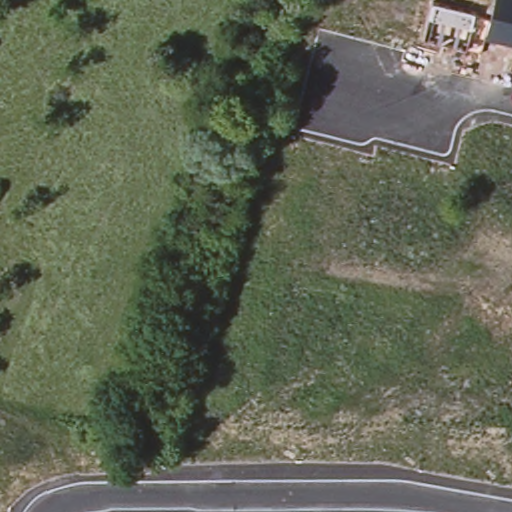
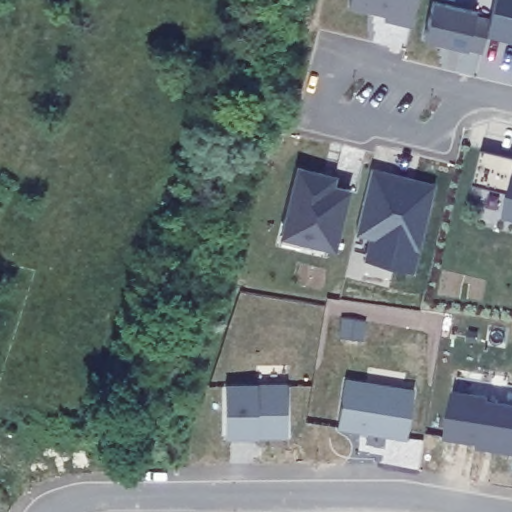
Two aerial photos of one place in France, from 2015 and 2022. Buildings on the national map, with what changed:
new [(412,27),(384,20),(385,15),(350,6),(351,0),(418,0),(412,27)]
unchanged [(486,35),(482,51),(425,35),(434,0),(478,11),(477,13),(491,16),(486,35)]
unchanged [(496,0),(512,0),(512,40),(486,35),(491,16),(496,0)]
new [(475,184),(483,150),(512,157),(512,194),(475,184)]
new [(297,165),(337,175),(335,185),(350,189),(336,251),(280,237),(297,165)]
new [(372,167),(435,183),(415,272),(363,260),(370,238),(355,234),(372,167)]
new [(506,218),(512,196),(512,219),(506,218)]
new [(415,389),(407,440),(337,429),(347,379),(415,389)]
new [(287,383),(289,438),(225,439),(225,384),(287,383)]
new [(490,395),(490,400),(512,404),(512,454),(478,448),(478,444),(445,439),(454,389),(490,395)]

